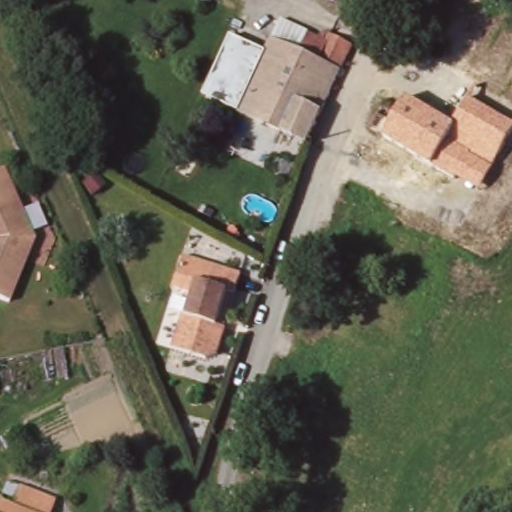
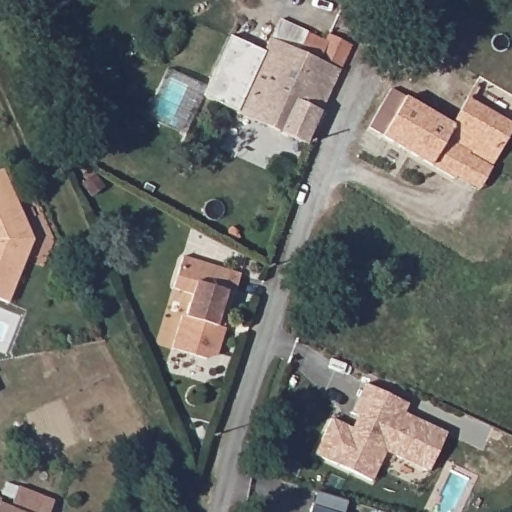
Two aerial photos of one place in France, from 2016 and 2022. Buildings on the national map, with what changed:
unchanged [(271,38),(299,52),(308,34),(323,40),(327,34),(353,47),(310,147),(236,114),(271,38)]
unchanged [(236,114),(200,97),(229,36),(265,51),(236,114)]
unchanged [(391,90),(451,125),(475,83),(512,104),(512,136),(478,195),(368,130),(391,90)]
unchanged [(8,304),(0,301),(0,174),(35,239),(8,304)]
unchanged [(186,296),(168,290),(179,256),(235,274),(229,295),(221,292),(211,326),(220,328),(212,355),(201,360),(167,348),(186,296)]
new [(314,457),(331,422),(352,432),(358,418),(351,416),(364,386),(392,400),(407,407),(403,416),(446,436),(428,474),(395,458),(385,453),(371,483),(314,457)]
unchanged [(12,497),(2,493),(7,481),(55,502),(51,512),(0,512),(0,502),(8,507),(12,497)]
new [(316,490),(347,501),(344,512),(310,512),(316,490)]

